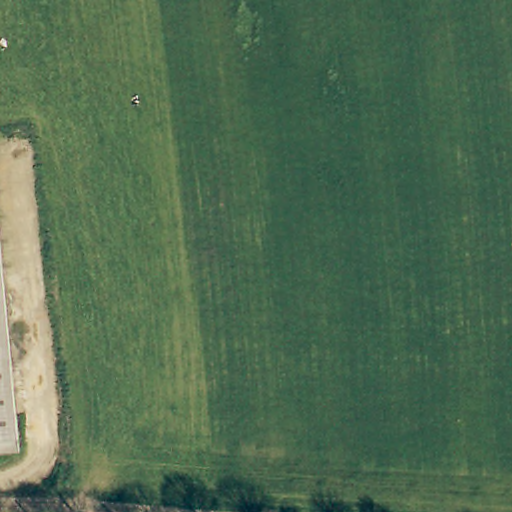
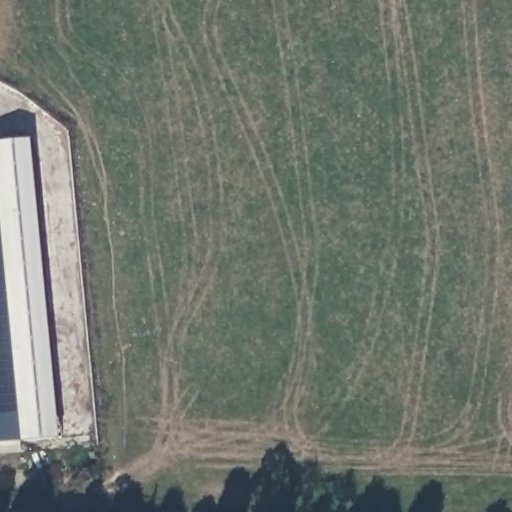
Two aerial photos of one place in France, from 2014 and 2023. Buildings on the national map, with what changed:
new [(27,138),(56,436),(21,440),(0,202),(0,141),(27,138)]
unchanged [(22,451),(0,454),(0,202),(22,451)]

